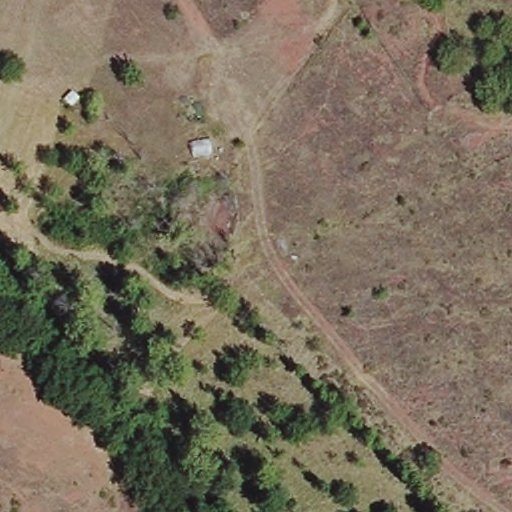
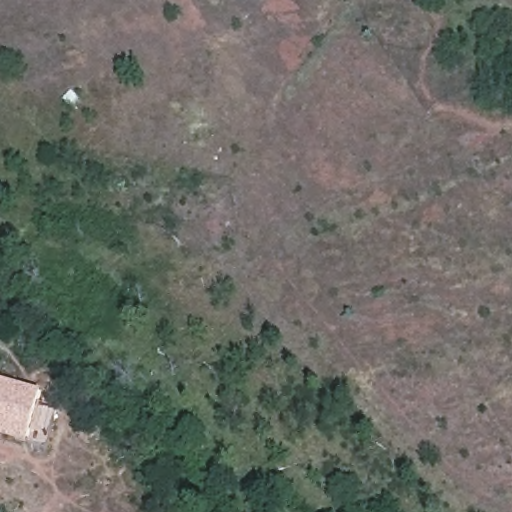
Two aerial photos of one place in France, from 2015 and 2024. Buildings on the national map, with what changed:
new [(44,393),(29,445),(0,437),(0,381),(44,393)]

